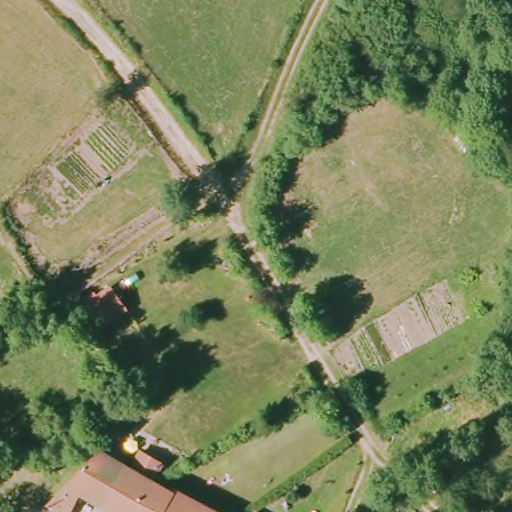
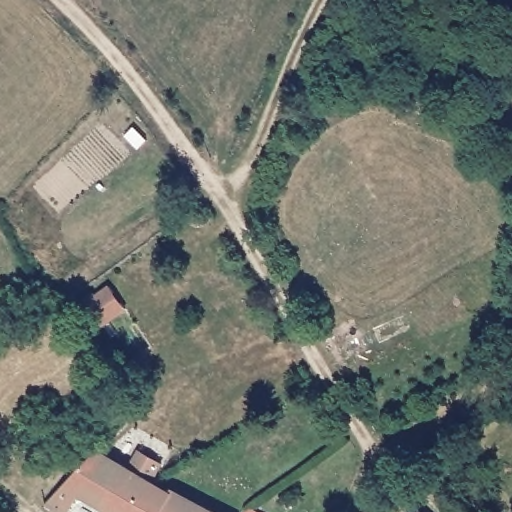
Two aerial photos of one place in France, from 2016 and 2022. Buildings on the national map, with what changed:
unchanged [(66,512),(60,512),(49,504),(91,440),(105,451),(128,463),(102,506),(79,493),(66,512)]
unchanged [(113,512),(102,506),(128,463),(140,469),(140,471),(157,481),(139,512),(113,512)]
unchanged [(160,478),(180,489),(177,492),(213,512),(139,512),(157,481),(160,478)]

